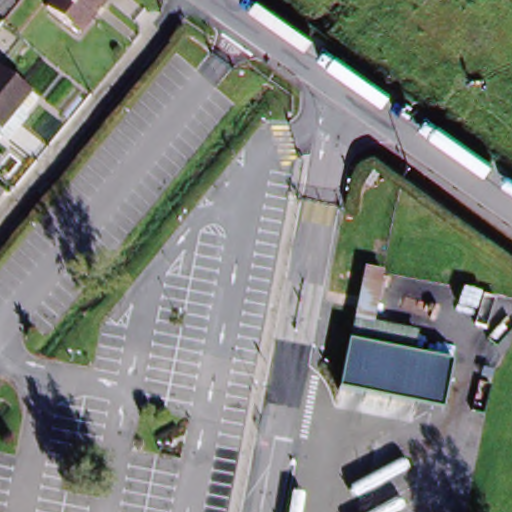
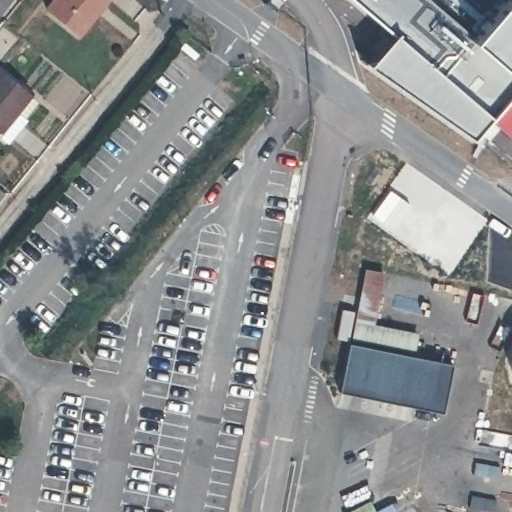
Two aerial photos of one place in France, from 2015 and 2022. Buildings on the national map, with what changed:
unchanged [(45,10),(52,0),(109,0),(78,37),(45,10)]
new [(483,125),(406,59),(410,55),(392,40),(388,45),(337,0),(432,0),(447,12),(443,17),(462,34),(457,41),(512,88),(512,92),(483,125)]
new [(457,41),(462,34),(443,17),(447,12),(432,0),(512,0),(512,88),(457,41)]
unchanged [(37,110),(10,144),(0,136),(0,88),(3,84),(37,110)]
unchanged [(336,276),(364,280),(367,270),(387,273),(380,322),(423,333),(420,355),(455,363),(446,409),(347,390),(355,345),(360,313),(332,302),(336,276)]
new [(511,362),(512,356),(512,367),(511,362)]

